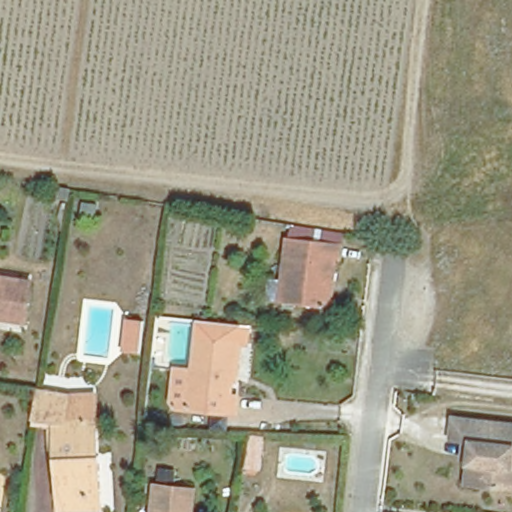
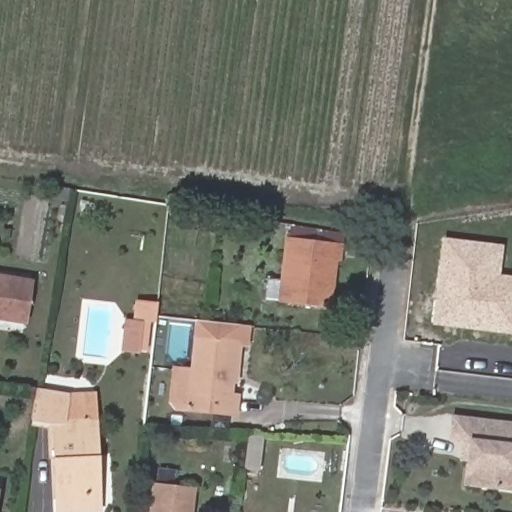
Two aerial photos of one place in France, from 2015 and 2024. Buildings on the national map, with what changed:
unchanged [(338,241),(344,242),(341,259),(337,258),(331,307),(280,301),(288,236),(292,237),(294,225),(339,231),(338,241)]
new [(512,276),(512,333),(441,325),(437,321),(445,239),(504,244),(500,275),(512,276)]
unchanged [(25,313),(0,309),(0,272),(30,276),(25,313)]
new [(144,354),(126,352),(129,320),(145,321),(144,354)]
unchanged [(226,375),(225,389),(234,390),(231,408),(179,402),(184,362),(187,362),(191,332),(237,337),(233,367),(232,376),(226,375)]
unchanged [(31,389),(32,385),(64,390),(60,415),(28,410),(31,389)]
unchanged [(91,416),(95,502),(54,505),(50,418),(91,416)]
unchanged [(471,459),(464,458),(466,440),(453,438),(455,417),(512,423),(512,488),(468,483),(471,459)]
new [(251,435),(266,437),(261,475),(246,473),(251,435)]
unchanged [(1,486),(0,492),(0,485),(1,486)]
unchanged [(155,486),(195,491),(192,512),(152,512),(155,486)]

